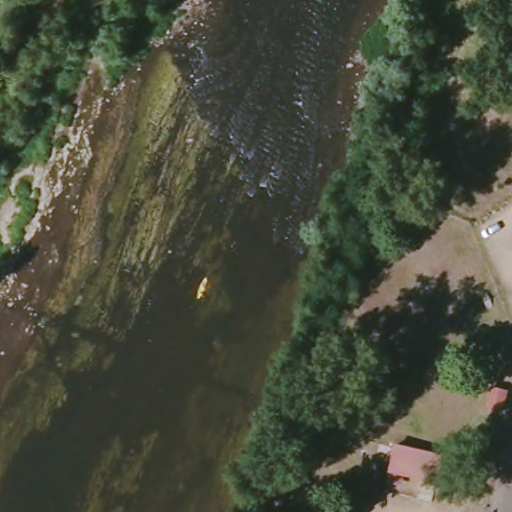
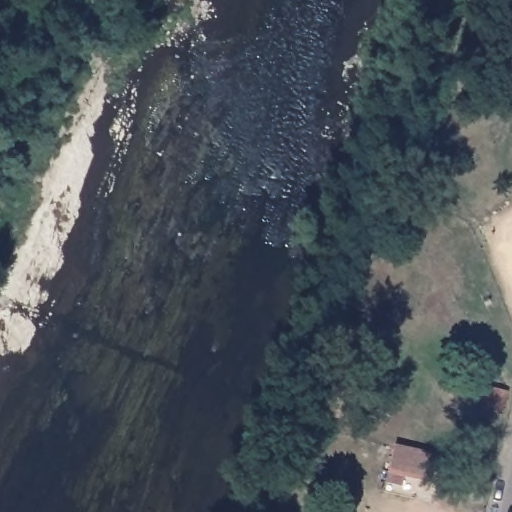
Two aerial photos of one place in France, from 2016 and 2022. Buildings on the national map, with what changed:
unchanged [(444,452),(437,486),(392,478),(396,446),(444,452)]

